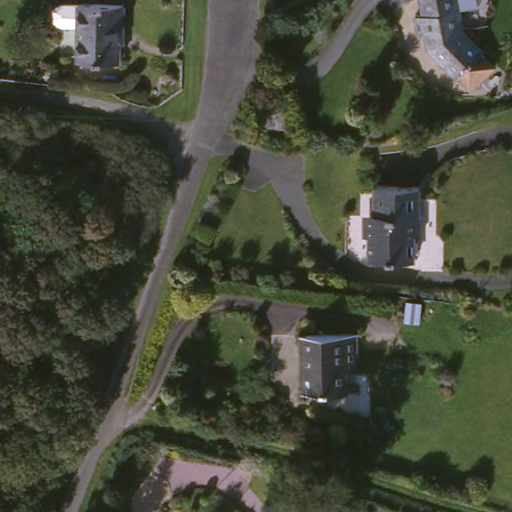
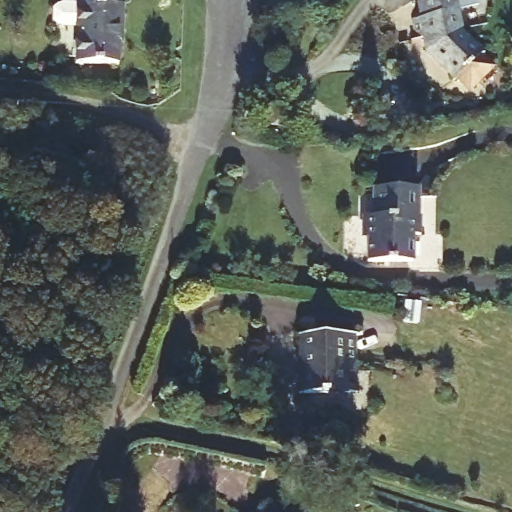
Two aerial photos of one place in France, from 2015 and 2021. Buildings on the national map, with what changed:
unchanged [(83,64),(80,60),(80,24),(59,21),(59,0),(98,0),(130,2),(131,25),(122,25),(121,65),(83,64)]
unchanged [(496,79),(470,99),(430,51),(428,41),(422,40),(420,20),(426,19),(425,0),(461,0),(466,36),(496,79)]
unchanged [(417,231),(420,257),(374,259),(372,214),(378,214),(376,187),(419,185),(420,210),(426,211),(426,230),(417,231)]
unchanged [(345,373),(345,386),(353,386),(355,398),(302,399),(302,368),(297,367),(297,359),(302,358),(302,339),(353,337),(354,372),(345,373)]

